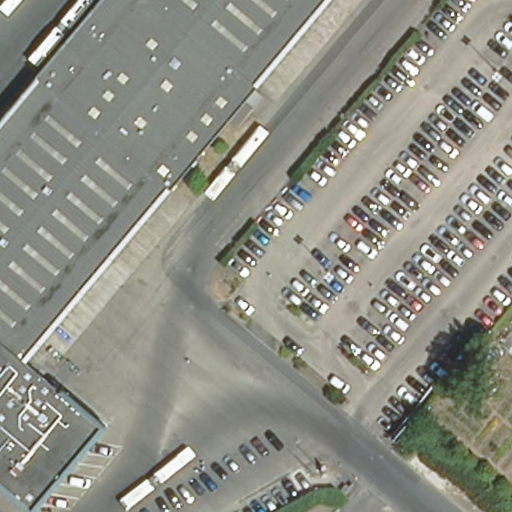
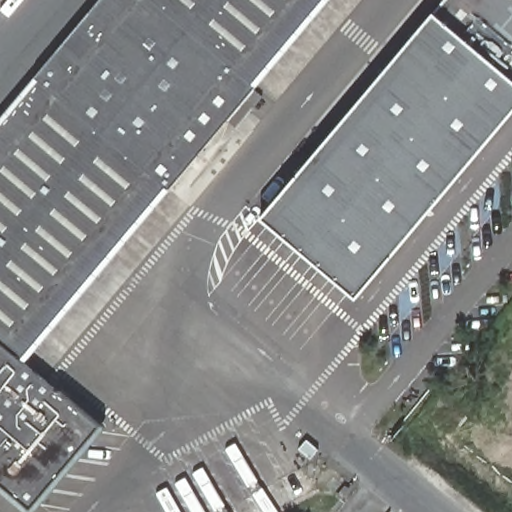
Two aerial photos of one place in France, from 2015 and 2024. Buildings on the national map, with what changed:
unchanged [(328,0),(254,87),(168,190),(26,358),(23,362),(0,343),(0,118),(99,0),(328,0)]
unchanged [(439,0),(512,0),(512,79),(430,10),(439,0)]
new [(430,10),(512,79),(512,113),(356,298),(260,217),(430,10)]
unchanged [(23,362),(99,426),(30,510),(0,484),(0,343),(23,362)]
unchanged [(336,496),(343,488),(347,492),(340,500),(336,496)]

